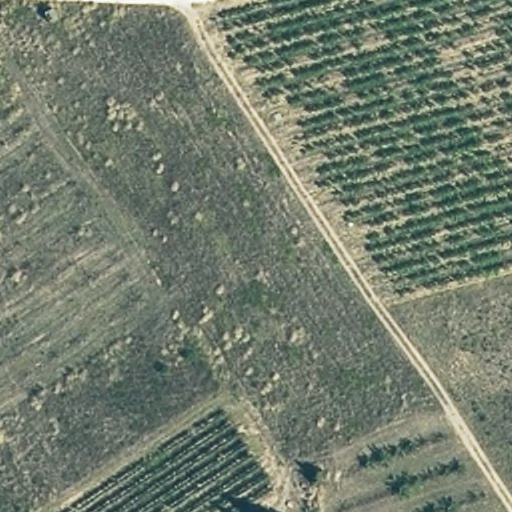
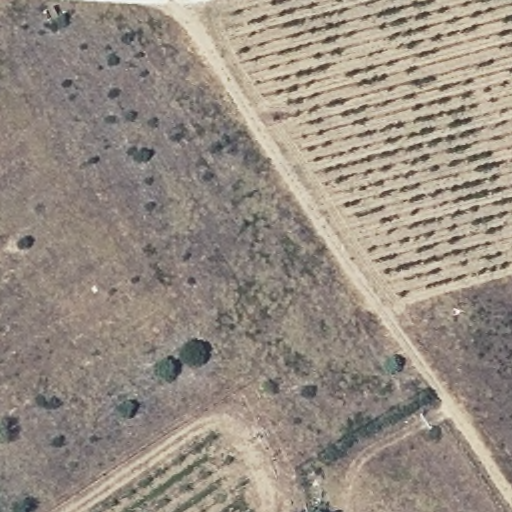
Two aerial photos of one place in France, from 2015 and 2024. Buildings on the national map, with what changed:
unchanged [(42,14),(52,8),(60,19),(52,25),(42,14)]

